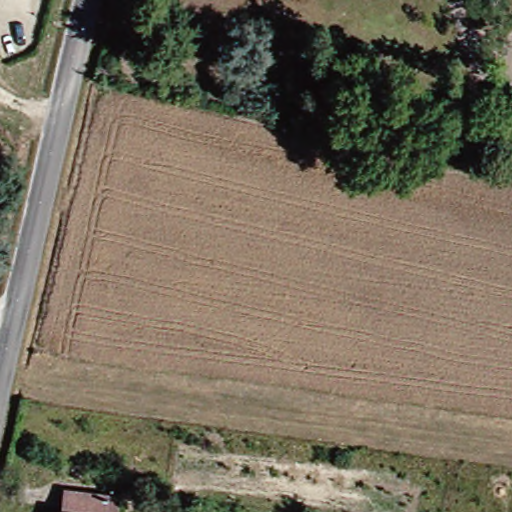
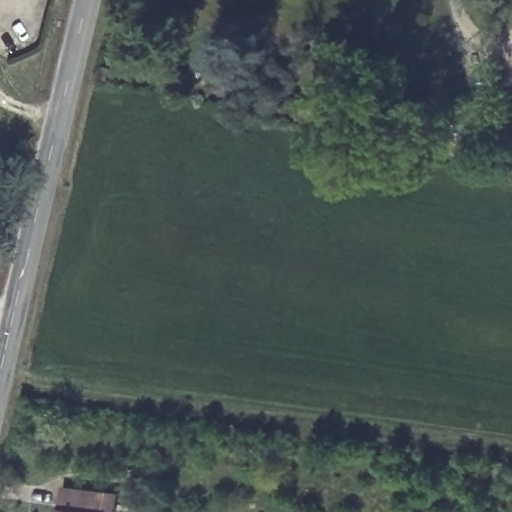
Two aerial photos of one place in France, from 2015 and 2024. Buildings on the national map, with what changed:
unchanged [(73,504),(73,489),(123,495),(122,512),(64,512),(65,504),(73,504)]

